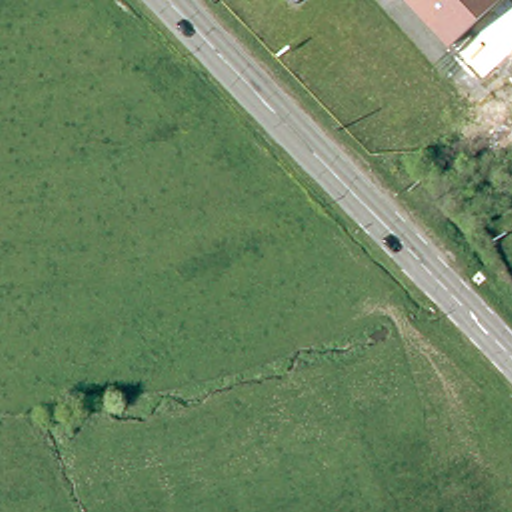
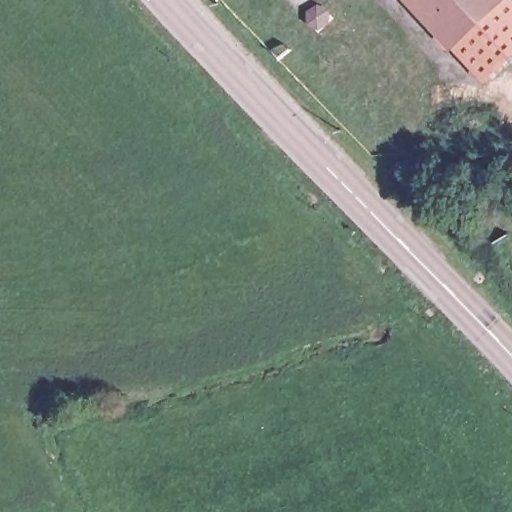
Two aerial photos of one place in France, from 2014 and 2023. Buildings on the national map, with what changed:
unchanged [(411,0),(505,0),(454,47),(411,0)]
new [(512,0),(512,55),(485,79),(454,47),(505,0),(512,0)]

